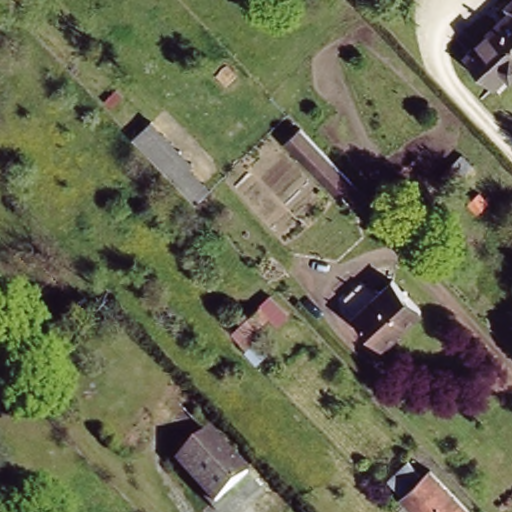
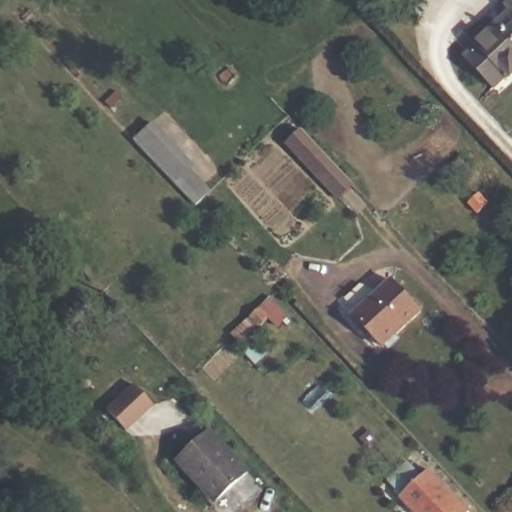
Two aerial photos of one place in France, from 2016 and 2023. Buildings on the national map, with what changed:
unchanged [(466,57),(482,41),(511,11),(508,8),(512,3),(512,75),(509,78),(507,75),(496,87),(466,57)]
unchanged [(129,137),(147,117),(213,188),(193,203),(129,137)]
unchanged [(336,201),(334,199),(285,146),(299,133),(349,185),(351,187),(336,201)]
unchanged [(357,285),(361,280),(380,291),(392,279),(421,309),(399,330),(357,285)]
unchanged [(399,330),(385,344),(341,300),(357,285),(399,330)]
unchanged [(228,332),(269,293),(289,312),(275,329),(284,341),(256,362),(228,332)]
new [(135,386),(153,406),(126,431),(108,411),(135,386)]
unchanged [(207,432),(245,471),(238,477),(217,498),(214,501),(176,462),(179,459),(201,438),(207,432)]
unchanged [(418,476),(416,477),(419,481),(429,471),(466,512),(414,512),(401,497),(402,497),(388,481),(407,464),(418,476)]

